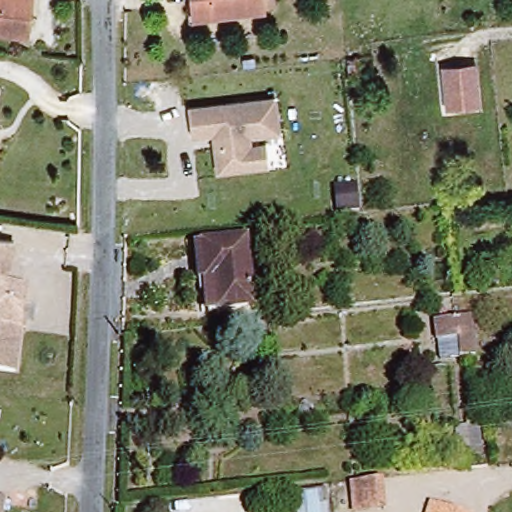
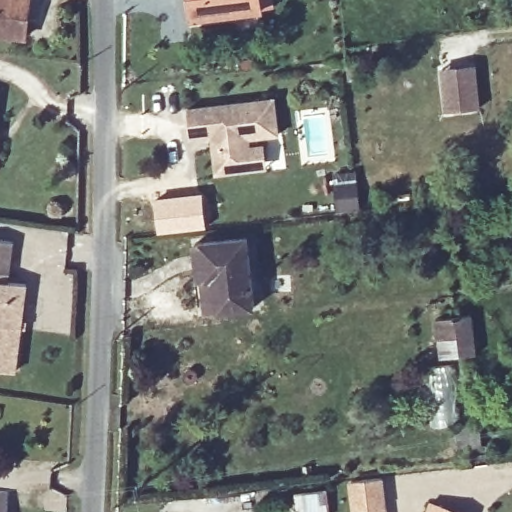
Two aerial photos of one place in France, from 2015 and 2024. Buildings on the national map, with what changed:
unchanged [(29,0),(26,16),(31,17),(28,35),(0,31),(0,0),(29,0)]
unchanged [(192,14),(191,0),(272,0),(272,5),(192,14)]
unchanged [(476,61),(481,106),(444,111),(440,65),(476,61)]
unchanged [(276,96),(279,133),(251,136),(251,144),(265,142),(268,166),(215,172),(211,134),(189,137),(187,105),(276,96)]
unchanged [(360,177),(361,209),(336,212),(334,179),(360,177)]
new [(203,191),(207,227),(156,234),(151,197),(203,191)]
unchanged [(247,237),(254,306),(209,310),(205,277),(201,278),(197,242),(247,237)]
unchanged [(12,245),(7,285),(26,288),(15,373),(0,371),(0,243),(12,245)]
unchanged [(475,314),(478,354),(464,355),(445,357),(441,318),(460,315),(475,314)]
unchanged [(351,480),(381,477),(383,506),(354,509),(351,480)]
unchanged [(296,497),(326,493),(328,512),(298,512),(296,497)]
unchanged [(10,498),(8,512),(0,512),(0,497),(10,498)]
unchanged [(430,501),(449,508),(461,512),(426,512),(430,501)]

